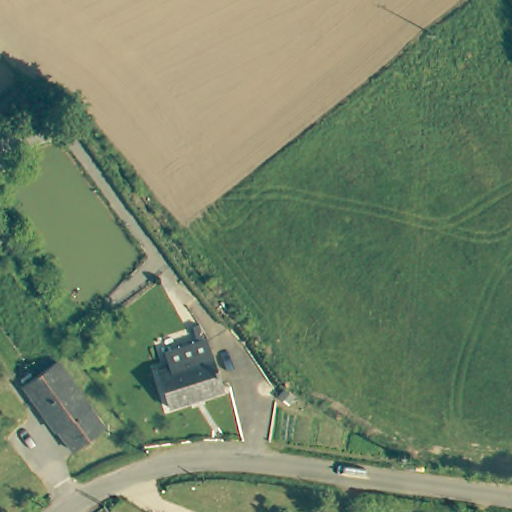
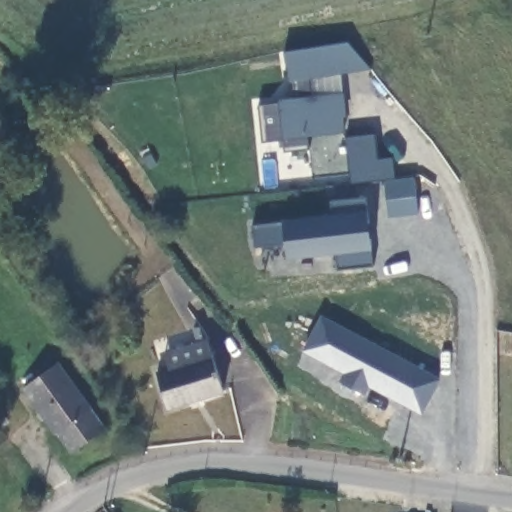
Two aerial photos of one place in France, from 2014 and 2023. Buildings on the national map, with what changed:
new [(349,42),(370,67),(310,76),(293,77),(289,78),(285,51),(349,42)]
new [(280,100),(279,96),(295,94),(293,77),(310,76),(312,92),(343,89),(345,103),(342,104),(345,129),(310,133),(310,147),(285,150),(283,137),(263,140),(259,102),(280,100)]
unchanged [(46,120),(29,135),(17,121),(35,106),(46,120)]
new [(412,175),(419,210),(390,215),(383,179),(412,175)]
new [(330,213),(328,199),(365,195),(367,222),(360,222),(360,237),(369,237),(371,264),(335,268),(333,250),(285,254),(283,240),(252,242),(250,220),(330,213)]
new [(427,409),(413,402),(384,389),(373,383),(370,391),(368,393),(345,382),(346,380),(349,372),(307,352),(323,319),(430,370),(442,376),(427,409)]
unchanged [(170,370),(166,355),(209,343),(223,395),(167,411),(157,374),(170,370)]
unchanged [(58,369),(105,426),(74,452),(25,392),(58,369)]

